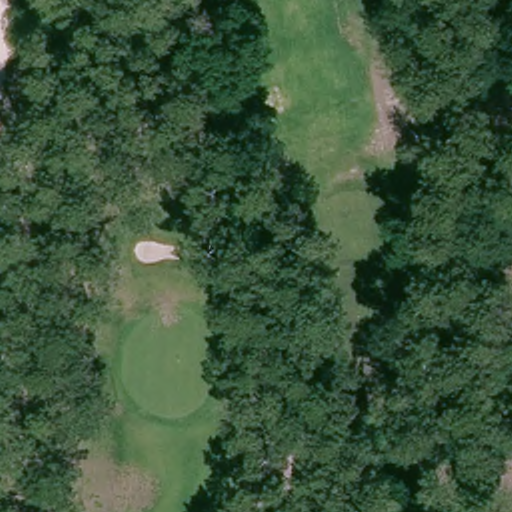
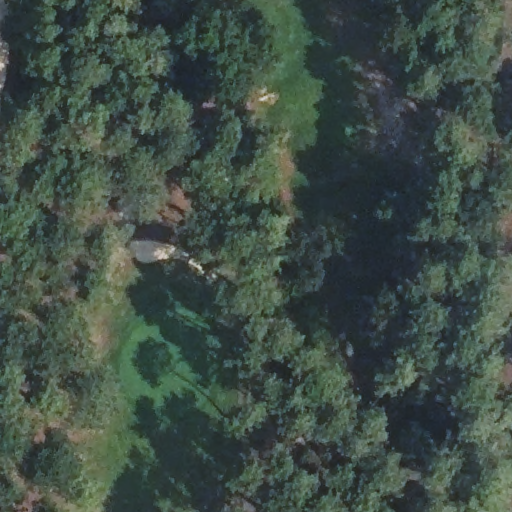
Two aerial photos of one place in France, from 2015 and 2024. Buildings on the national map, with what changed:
[]

